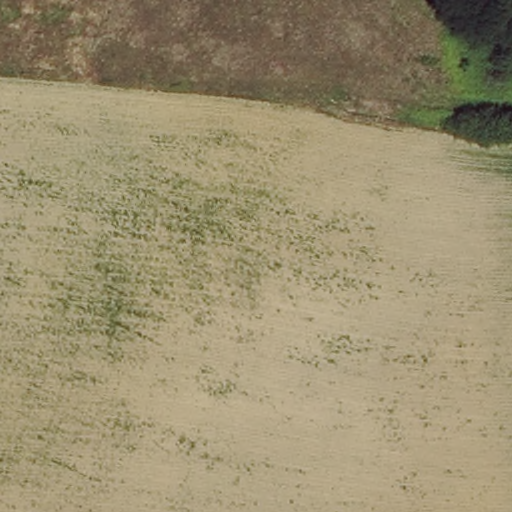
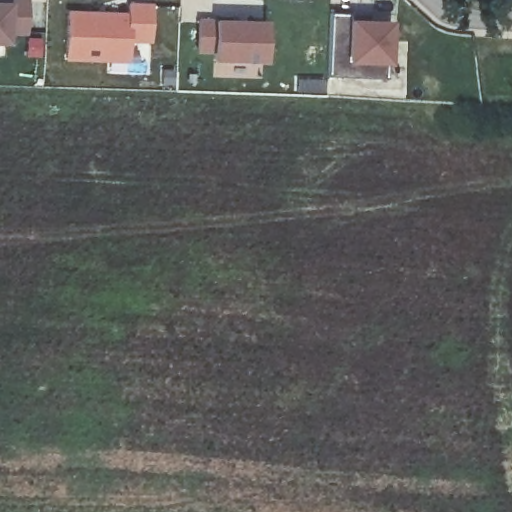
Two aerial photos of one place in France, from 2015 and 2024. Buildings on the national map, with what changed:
new [(10,1),(11,0),(27,0),(25,33),(8,29),(7,45),(0,44),(0,1),(10,1)]
new [(127,12),(127,2),(153,3),(151,43),(129,42),(127,64),(65,61),(67,10),(127,12)]
new [(348,14),(347,17),(388,20),(386,64),(386,78),(326,78),(330,13),(348,14)]
new [(215,18),(266,21),(264,62),(211,60),(212,51),(195,54),(197,16),(215,18)]

